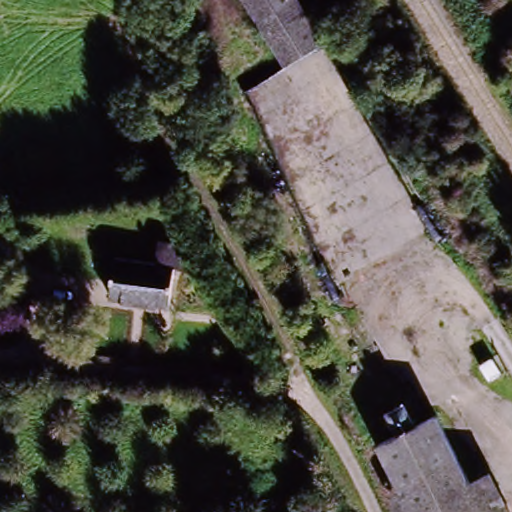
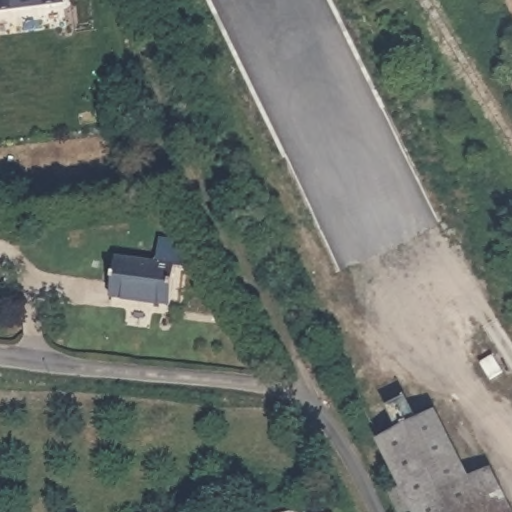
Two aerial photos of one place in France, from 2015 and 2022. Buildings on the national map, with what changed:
new [(0,0),(57,0),(0,7),(0,0)]
unchanged [(248,0),(304,0),(326,35),(286,61),(248,0)]
unchanged [(106,295),(108,257),(156,261),(158,239),(186,242),(185,263),(174,262),(173,299),(106,295)]
unchanged [(383,431),(443,407),(485,512),(414,512),(383,431)]

